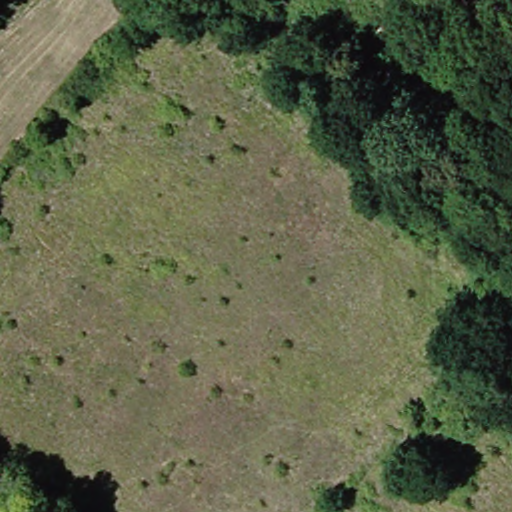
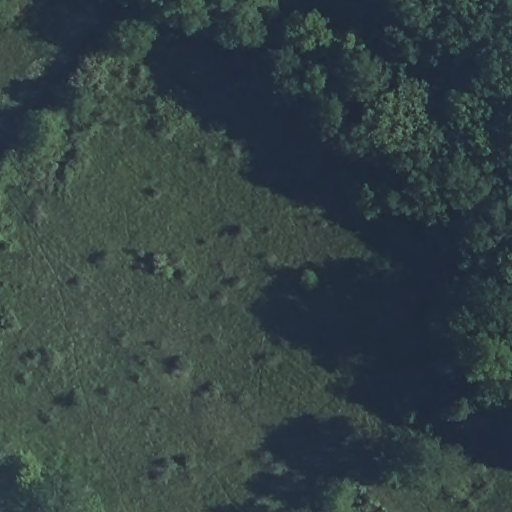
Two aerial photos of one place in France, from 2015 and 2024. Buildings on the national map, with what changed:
unchanged [(439,78),(443,69),(471,81),(459,120),(424,106),(431,74),(439,78)]

